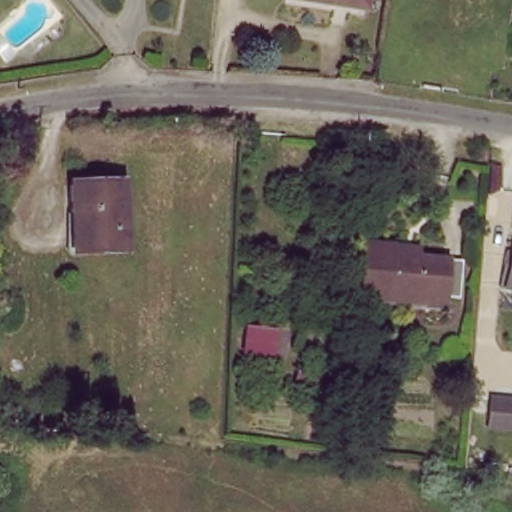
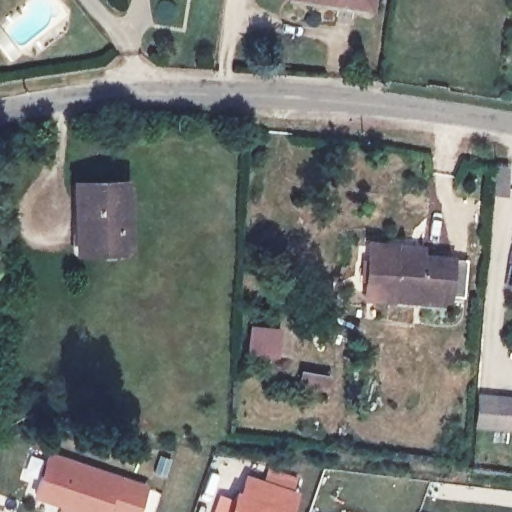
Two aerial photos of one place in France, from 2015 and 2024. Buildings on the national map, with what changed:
unchanged [(309,0),(342,0),(341,5),(309,0)]
unchanged [(356,0),(373,0),(373,3),(356,0)]
unchanged [(128,186),(128,244),(79,245),(78,188),(128,186)]
unchanged [(365,241),(393,241),(393,255),(470,259),(468,297),(390,292),(390,300),(364,300),(365,241)]
new [(477,391),(512,394),(512,432),(476,428),(477,391)]
new [(146,485),(137,512),(97,512),(38,492),(49,453),(146,485)]
new [(302,498),(297,512),(234,512),(248,477),(302,498)]

